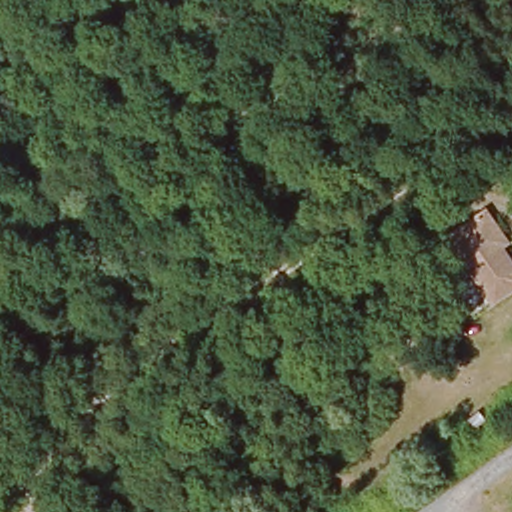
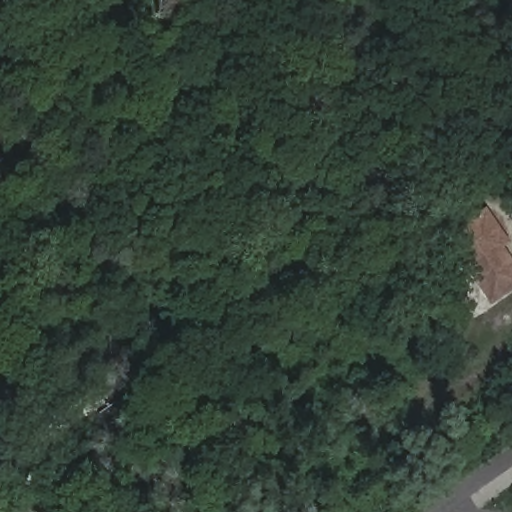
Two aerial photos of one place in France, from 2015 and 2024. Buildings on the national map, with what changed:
unchanged [(444,232),(482,205),(505,237),(498,241),(512,261),(512,280),(488,297),(444,232)]

